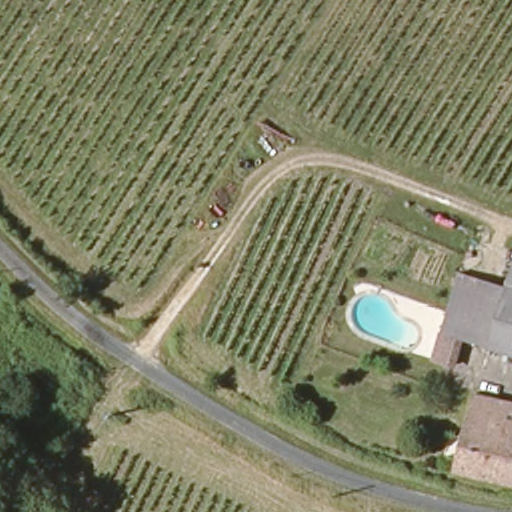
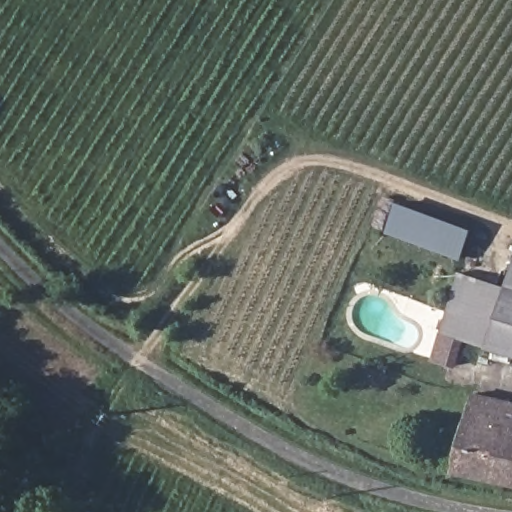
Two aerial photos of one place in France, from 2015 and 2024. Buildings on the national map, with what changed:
new [(473,230),(461,261),(387,231),(400,201),(473,230)]
unchanged [(491,348),(440,334),(461,271),(509,287),(512,289),(512,358),(490,352),(491,348)]
unchanged [(509,287),(512,277),(512,289),(509,287)]
unchanged [(464,473),(481,397),(512,404),(512,483),(464,473)]

